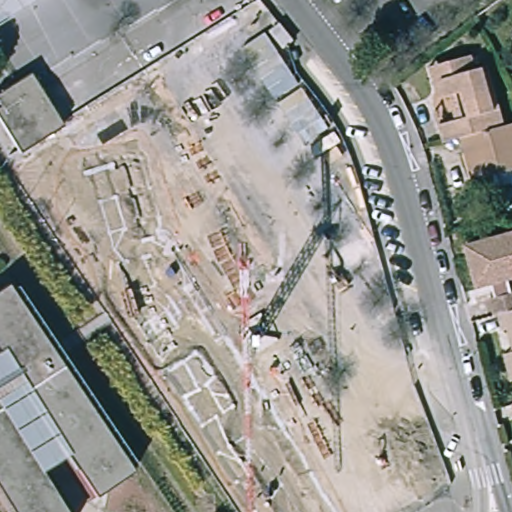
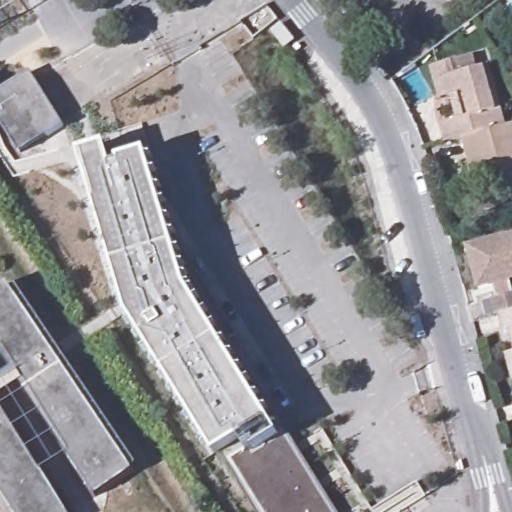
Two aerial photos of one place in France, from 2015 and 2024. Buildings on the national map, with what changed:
unchanged [(0,17),(0,0),(27,0),(0,17)]
unchanged [(282,26),(295,42),(286,49),(273,32),(282,26)]
unchanged [(440,141),(435,122),(451,118),(445,94),(442,95),(435,97),(426,66),(433,64),(470,54),(474,69),(480,67),(487,65),(495,92),(504,123),(459,136),(440,141)]
unchanged [(0,129),(0,85),(24,70),(57,123),(13,150),(0,129)]
unchanged [(474,177),(467,153),(463,154),(459,136),(504,123),(512,121),(512,166),(474,177)]
new [(187,289),(272,423),(273,425),(280,435),(254,449),(248,436),(219,453),(216,455),(129,317),(78,156),(107,146),(114,168),(121,167),(119,161),(146,153),(187,289)]
unchanged [(481,293),(467,250),(512,238),(512,285),(481,293)]
unchanged [(68,469),(76,464),(71,456),(1,343),(0,341),(0,286),(7,282),(125,474),(85,498),(68,469)]
unchanged [(507,331),(502,333),(496,313),(492,299),(512,294),(512,349),(507,331)]
unchanged [(71,456),(28,483),(0,434),(0,343),(1,343),(71,456)]
unchanged [(507,354),(512,353),(512,373),(507,354)]
new [(254,449),(280,435),(273,425),(279,421),(334,512),(255,512),(219,453),(248,436),(254,449)]
unchanged [(56,512),(2,512),(0,509),(0,434),(28,483),(40,504),(49,499),(56,512)]

